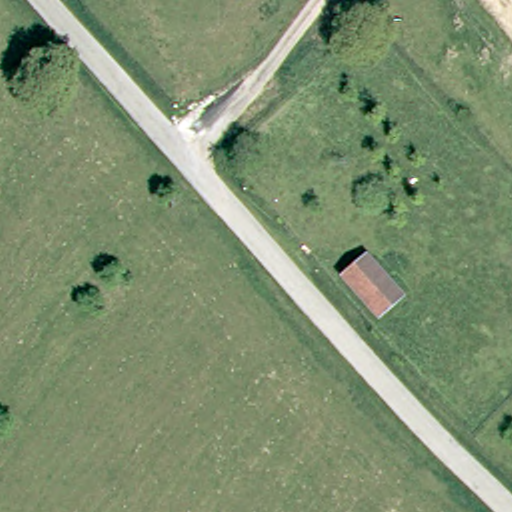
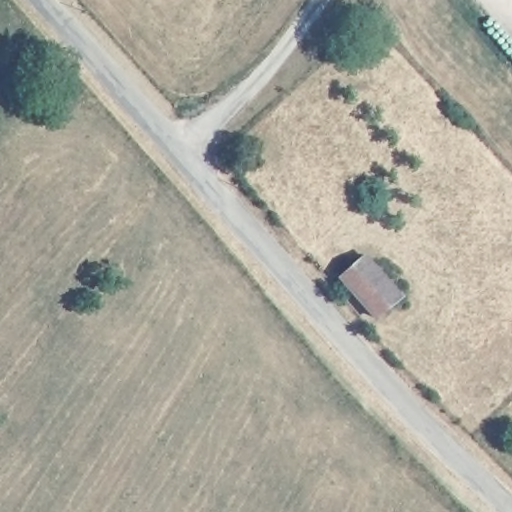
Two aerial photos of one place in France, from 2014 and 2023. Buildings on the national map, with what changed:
unchanged [(364,257),(403,298),(379,320),(341,280),(364,257)]

